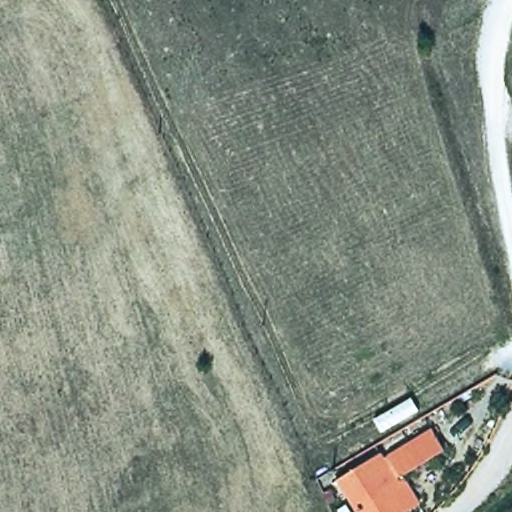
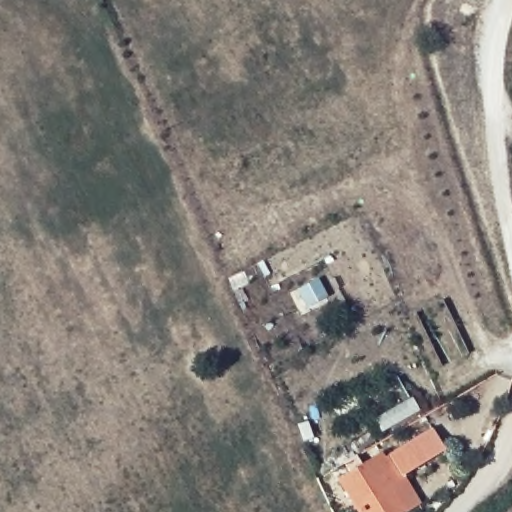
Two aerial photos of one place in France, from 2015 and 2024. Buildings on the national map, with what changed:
unchanged [(382,452),(384,455),(430,425),(445,449),(405,474),(423,503),(410,512),(357,512),(337,480),(382,452)]

